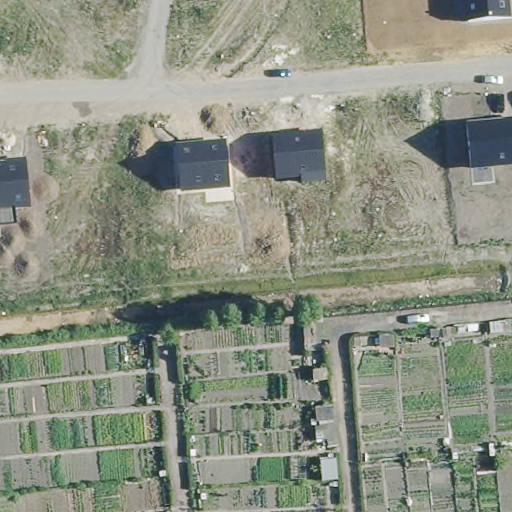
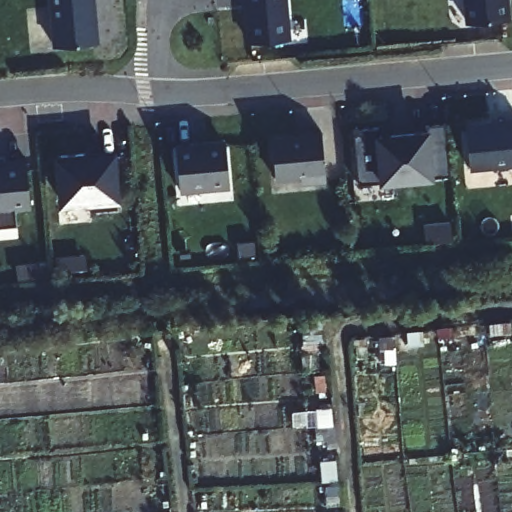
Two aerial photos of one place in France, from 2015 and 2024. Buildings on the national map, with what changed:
new [(92,44),(54,47),(50,0),(93,0),(96,39),(92,44)]
new [(250,44),(245,1),(240,1),(240,0),(285,0),(288,41),(250,44)]
unchanged [(465,24),(463,0),(510,0),(511,20),(465,24)]
unchanged [(512,119),(512,167),(470,170),(465,124),(512,119)]
new [(377,128),(378,138),(425,133),(425,126),(445,124),(450,177),(357,185),(352,130),(377,128)]
unchanged [(322,130),(326,183),(301,184),(301,178),(275,179),(272,134),(322,130)]
unchanged [(226,140),(231,190),(181,195),(175,145),(226,140)]
new [(83,154),(83,159),(112,156),(116,209),(89,212),(88,202),(61,204),(57,156),(83,154)]
unchanged [(30,209),(16,210),(17,225),(0,227),(0,161),(27,158),(30,209)]
new [(448,223),(450,243),(425,245),(423,225),(448,223)]
new [(254,244),(255,259),(239,260),(237,245),(254,244)]
unchanged [(325,343),(313,344),(313,340),(302,340),(302,326),(313,325),(312,315),(321,314),(325,343)]
unchanged [(510,321),(511,333),(489,335),(488,323),(510,321)]
unchanged [(428,329),(440,328),(454,327),(455,337),(441,338),(441,337),(429,338),(428,329)]
unchanged [(395,348),(378,348),(378,335),(393,335),(395,348)]
unchanged [(333,421),(315,423),(313,408),(331,406),(333,421)]
unchanged [(336,447),(327,448),(326,439),(322,440),(320,426),(333,425),(336,447)]
unchanged [(340,479),(333,480),(331,472),(339,470),(340,479)]
unchanged [(333,481),(338,481),(340,496),(325,496),(324,482),(333,481)]

